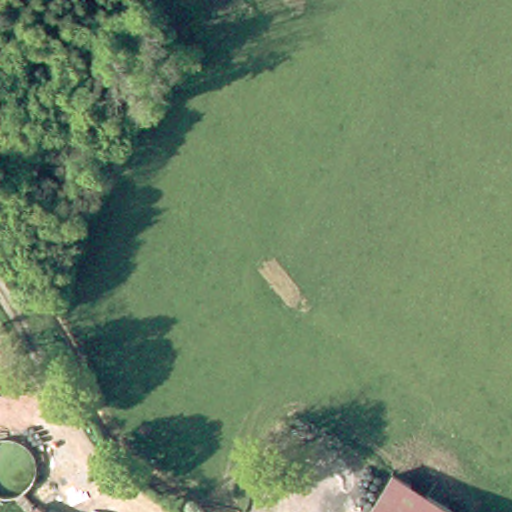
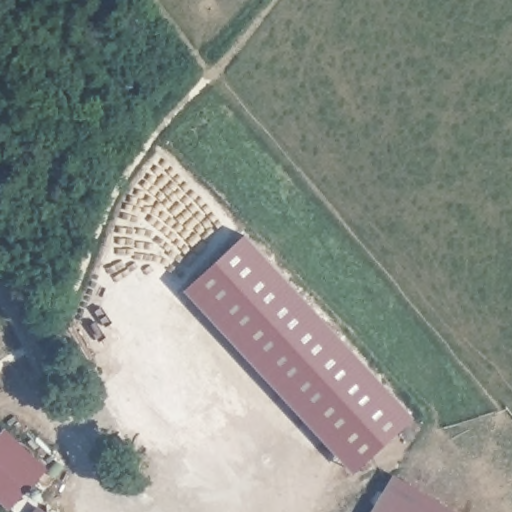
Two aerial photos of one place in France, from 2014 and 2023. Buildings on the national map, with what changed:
new [(352,472),(183,288),(244,232),(414,415),(352,472)]
new [(48,468),(9,511),(0,503),(0,433),(5,428),(48,468)]
unchanged [(464,512),(371,512),(393,470),(464,512)]
unchanged [(38,505),(47,512),(32,512),(38,505)]

